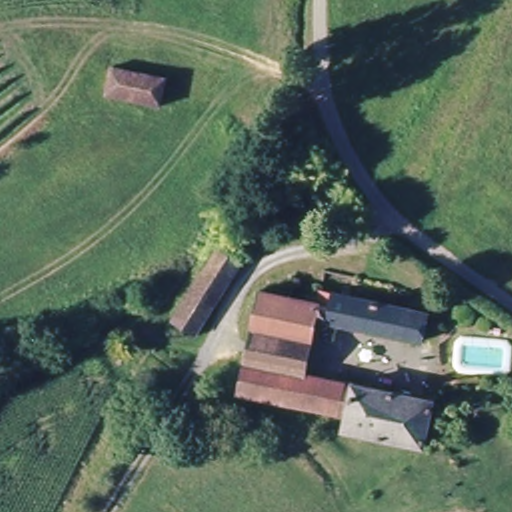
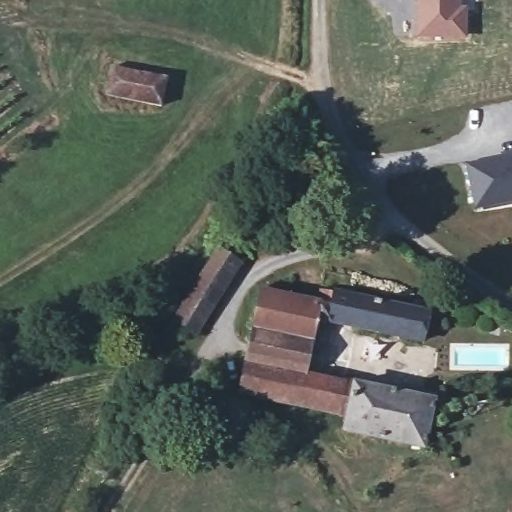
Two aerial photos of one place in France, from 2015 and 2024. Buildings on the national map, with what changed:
new [(414,0),(461,0),(461,5),(467,5),(466,40),(413,37),(414,0)]
unchanged [(109,69),(166,82),(160,109),(103,97),(109,69)]
new [(512,155),(512,200),(477,206),(468,164),(512,155)]
unchanged [(217,249),(240,264),(194,335),(171,321),(217,249)]
unchanged [(254,297),(299,305),(300,300),(318,302),(319,296),(428,318),(423,344),(320,326),(310,375),(432,402),(422,447),(340,432),(343,420),(238,392),(254,297)]

